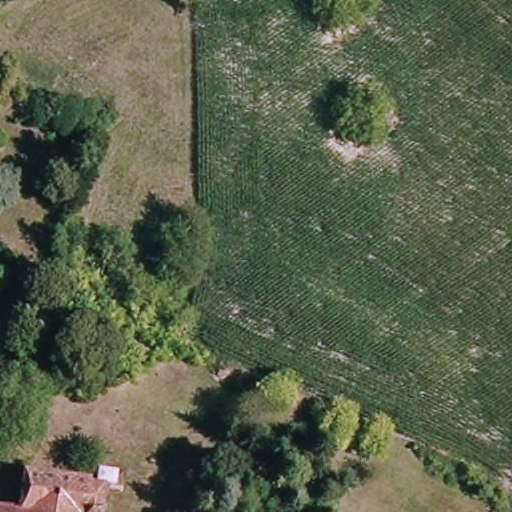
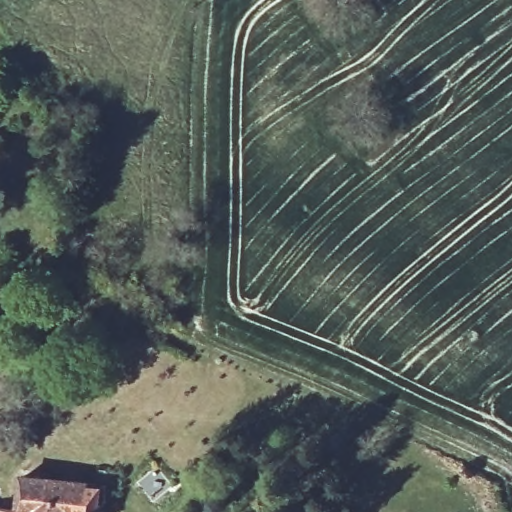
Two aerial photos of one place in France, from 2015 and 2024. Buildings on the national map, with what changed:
unchanged [(107,493),(105,512),(20,512),(24,481),(107,493)]

